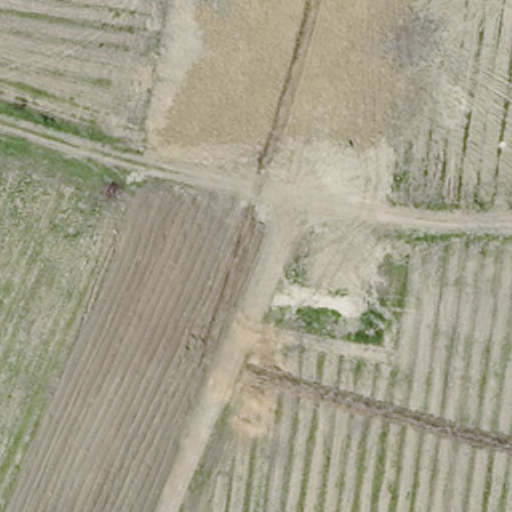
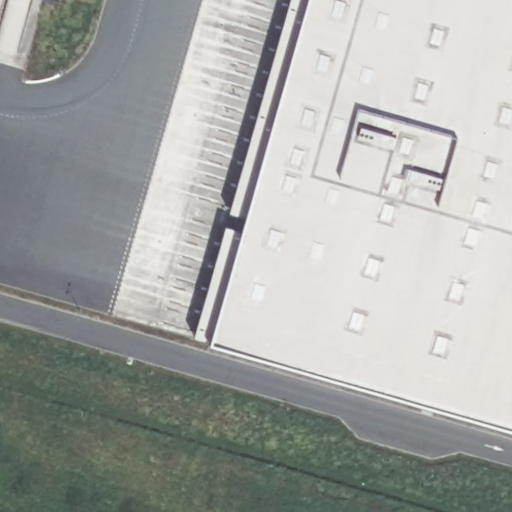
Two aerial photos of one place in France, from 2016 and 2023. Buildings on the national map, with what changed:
new [(212,343),(310,0),(512,0),(512,428),(212,343)]
demolished [(373,242),(366,284),(314,275),(321,234),(373,242)]

